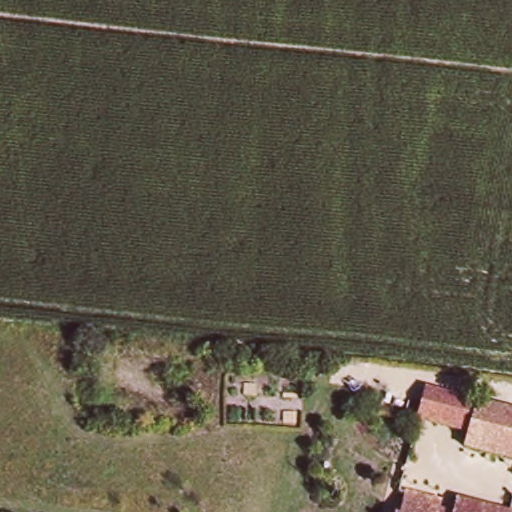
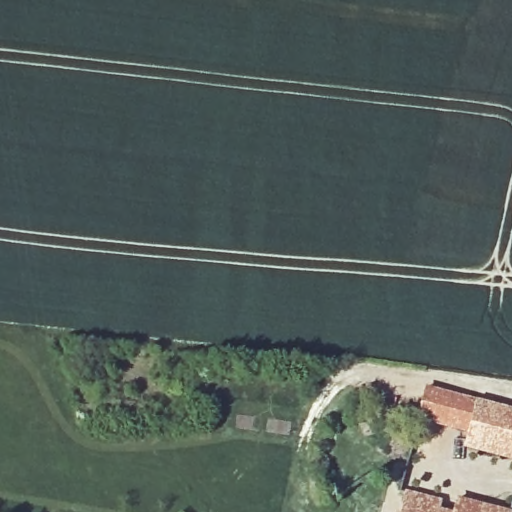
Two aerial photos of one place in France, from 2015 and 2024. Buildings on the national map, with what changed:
unchanged [(465,431),(413,422),(419,393),(471,402),(465,431)]
unchanged [(462,449),(465,431),(471,402),(512,409),(512,457),(462,449)]
unchanged [(401,497),(434,504),(432,512),(398,512),(401,497)]
unchanged [(451,500),(509,510),(508,512),(449,512),(451,500)]

